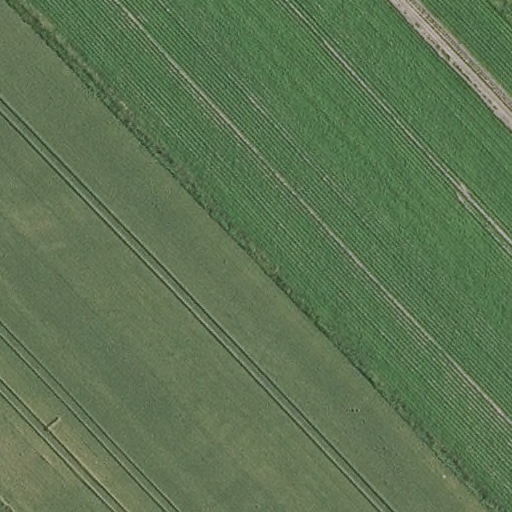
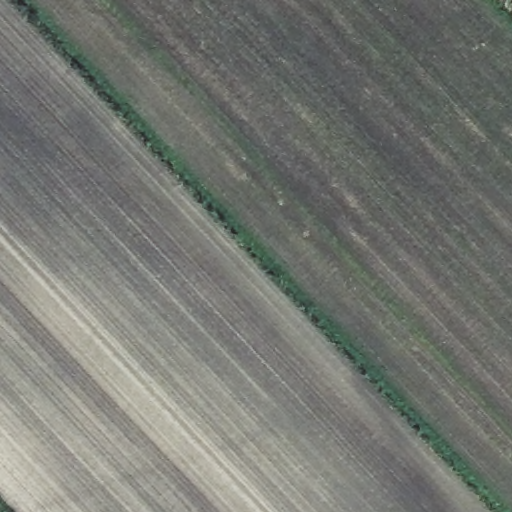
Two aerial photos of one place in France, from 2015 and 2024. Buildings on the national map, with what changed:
[]

